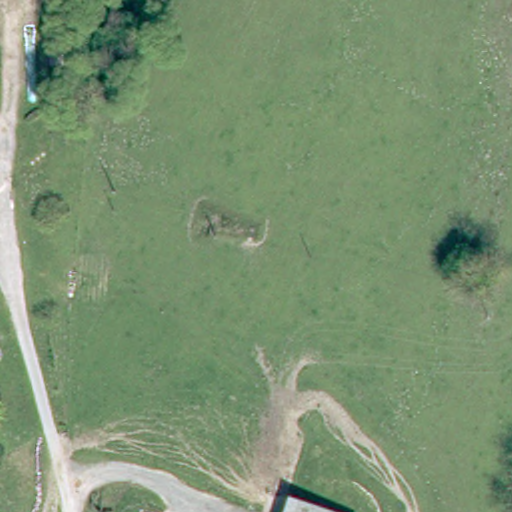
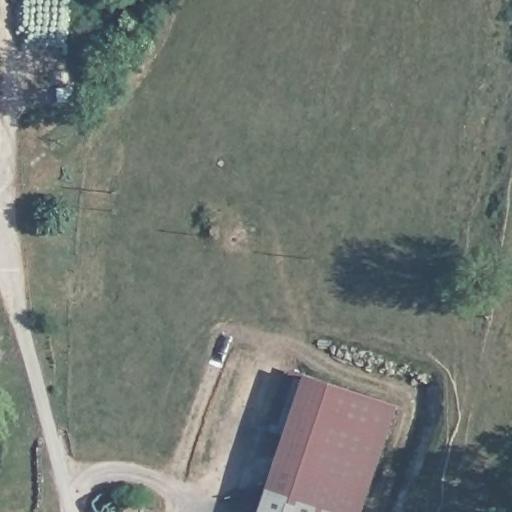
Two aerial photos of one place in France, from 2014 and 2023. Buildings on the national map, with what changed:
new [(290,500),(286,512),(259,512),(305,373),(397,404),(361,512),(328,512),(290,500)]
unchanged [(290,500),(328,512),(286,512),(290,500)]

